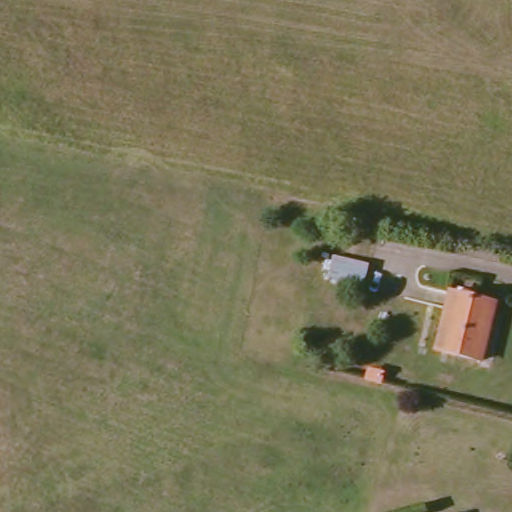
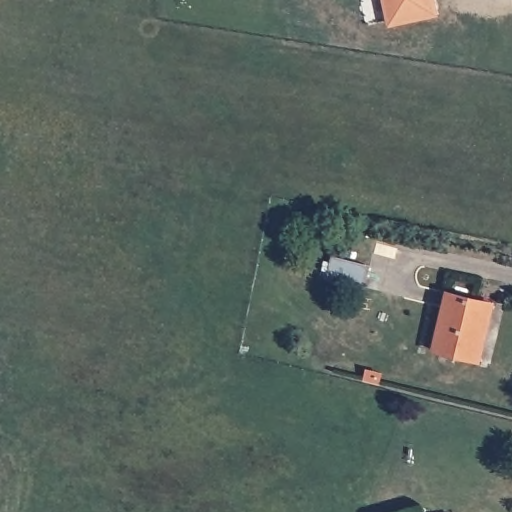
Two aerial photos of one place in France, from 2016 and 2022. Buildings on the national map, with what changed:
new [(383,0),(436,0),(439,15),(388,26),(383,0)]
unchanged [(479,359),(435,348),(447,291),(492,303),(479,359)]

